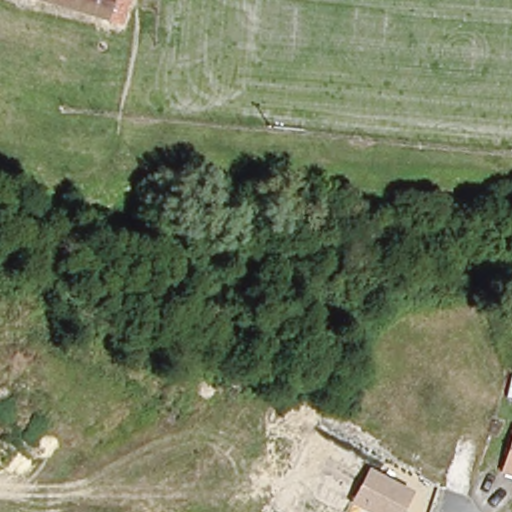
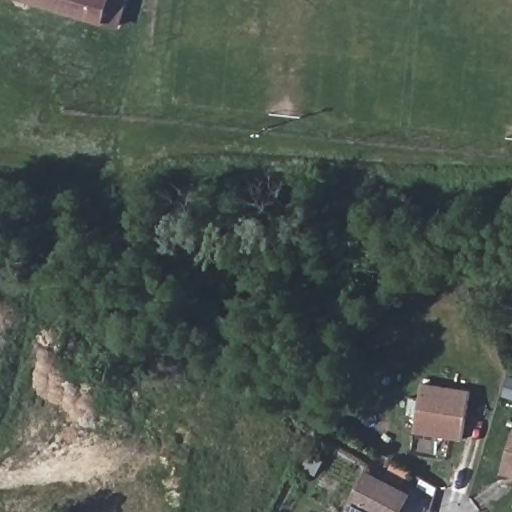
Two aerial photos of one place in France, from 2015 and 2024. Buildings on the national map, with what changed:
unchanged [(97,24),(25,0),(117,0),(109,27),(97,24)]
new [(472,391),(462,440),(415,432),(424,383),(472,391)]
unchanged [(512,467),(512,476),(510,476),(512,467)]
unchanged [(401,512),(360,512),(348,506),(366,470),(411,492),(401,512)]

